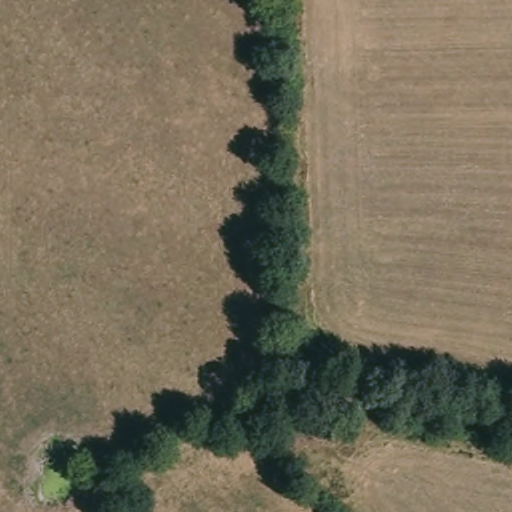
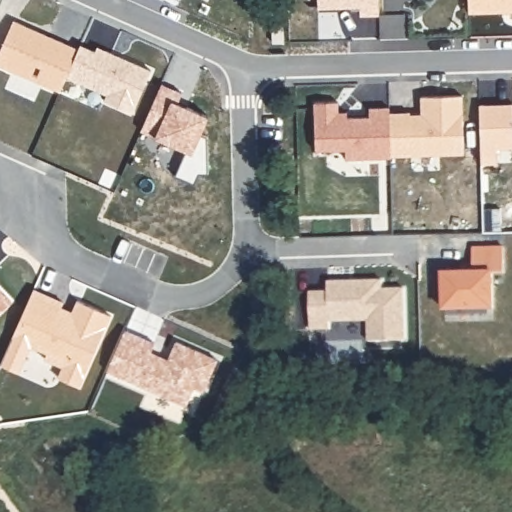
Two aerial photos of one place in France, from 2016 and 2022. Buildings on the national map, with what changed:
new [(317,0),(377,0),(378,15),(360,16),(360,7),(317,8),(317,0)]
new [(468,0),(512,0),(512,11),(468,12),(468,0)]
new [(67,78),(60,94),(0,67),(0,53),(14,22),(79,52),(67,78)]
new [(79,52),(82,46),(105,57),(107,53),(152,73),(132,116),(105,103),(108,97),(67,78),(79,52)]
new [(162,84),(183,93),(178,103),(209,117),(201,134),(208,137),(207,175),(199,175),(194,186),(174,176),(186,151),(141,130),(162,84)]
new [(390,156),(390,114),(410,113),(410,116),(422,116),(422,98),(463,97),(464,156),(440,156),(411,157),(390,156)]
new [(338,102),(339,118),(370,117),(370,108),(390,108),(390,114),(390,156),(390,158),(345,159),(345,150),(315,150),(315,102),(338,102)]
new [(480,151),(480,107),(512,107),(512,151),(496,151),(496,166),(481,166),(480,151)]
new [(461,266),(472,266),(472,250),(501,249),(503,275),(491,276),(492,311),(443,311),(442,275),(457,275),(461,266)]
new [(326,291),(326,281),(341,281),(341,286),(349,286),(349,281),(380,281),(380,290),(402,289),(403,341),(366,342),(366,321),(328,321),(328,328),(308,329),(308,291),(326,291)]
new [(11,303),(0,314),(0,291),(11,303)]
new [(65,304),(63,309),(74,315),(80,303),(114,319),(80,390),(60,380),(65,370),(46,361),(49,355),(14,338),(36,291),(65,304)]
new [(156,346),(152,356),(169,363),(177,345),(219,364),(204,396),(195,391),(186,410),(108,374),(127,332),(156,346)]
new [(12,338),(32,347),(20,374),(1,366),(12,338)]

